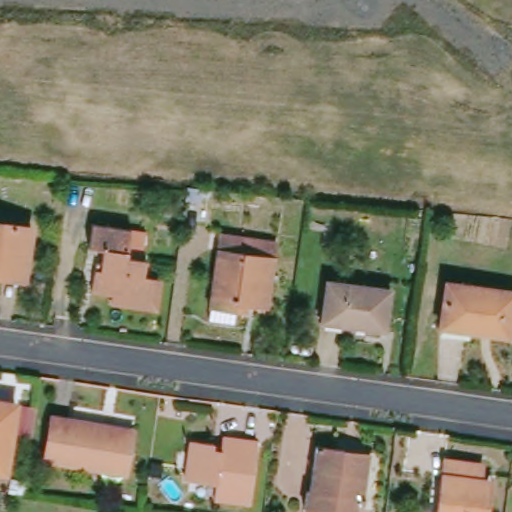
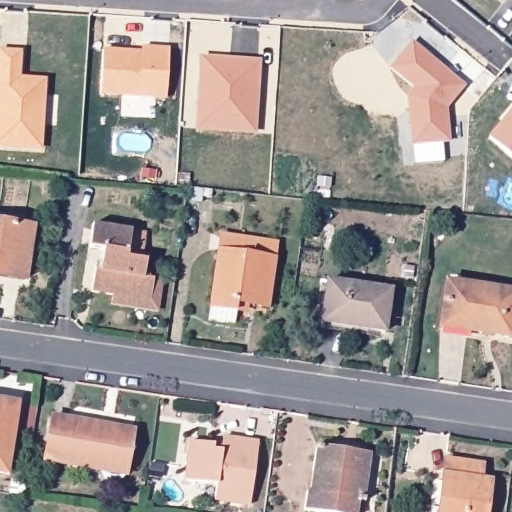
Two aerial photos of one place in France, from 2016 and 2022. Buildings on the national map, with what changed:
new [(410,96),(417,88),(393,68),(415,42),(467,85),(449,107),(452,141),(416,145),(413,123),(412,113),(410,96)]
new [(101,95),(103,47),(142,48),(141,43),(171,43),(168,99),(101,95)]
new [(28,49),(26,76),(48,77),(41,154),(0,152),(0,47),(28,49)]
new [(259,132),(196,132),(200,54),(262,57),(259,132)]
new [(512,154),(492,138),(512,114),(512,154)]
unchanged [(0,272),(0,227),(27,231),(21,275),(0,272)]
unchanged [(87,297),(91,268),(96,269),(98,255),(83,252),(86,229),(142,237),(138,265),(141,266),(140,282),(149,284),(146,305),(87,297)]
unchanged [(260,310),(232,306),(231,313),(205,309),(215,238),(270,246),(260,310)]
unchanged [(319,323),(325,280),(390,290),(383,332),(319,323)]
unchanged [(445,282),(512,293),(512,306),(507,336),(438,327),(445,282)]
unchanged [(0,478),(0,405),(12,407),(1,478),(0,478)]
unchanged [(44,464),(50,424),(131,437),(125,478),(44,464)]
unchanged [(211,500),(213,486),(181,480),(188,441),(211,445),(210,452),(218,453),(220,439),(255,444),(246,506),(211,500)]
unchanged [(305,490),(308,491),(315,447),(342,451),(341,460),(366,464),(360,501),(356,500),(354,512),(318,512),(302,509),(305,490)]
unchanged [(442,460),(478,465),(476,480),(485,482),(481,512),(435,512),(435,507),(442,460)]

